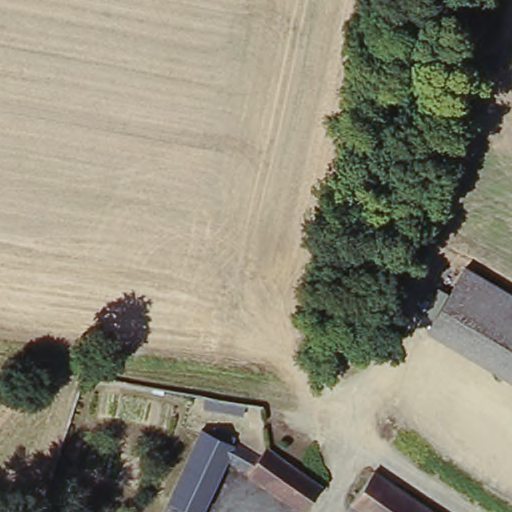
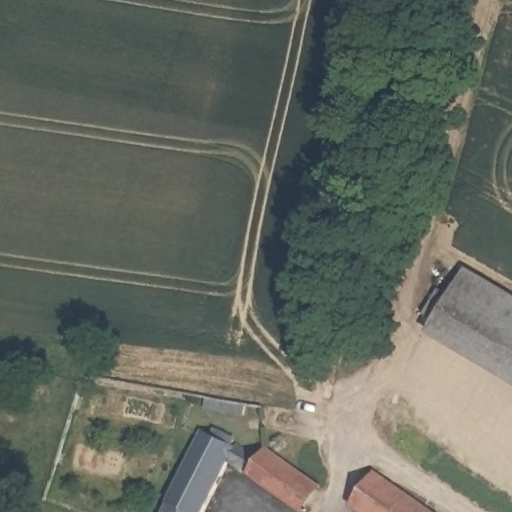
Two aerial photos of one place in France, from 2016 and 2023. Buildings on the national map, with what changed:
unchanged [(435,322),(465,273),(512,300),(512,381),(428,333),(435,322)]
unchanged [(243,415),(204,410),(206,394),(246,400),(243,415)]
unchanged [(236,448),(261,462),(266,455),(319,491),(307,512),(298,512),(276,496),(247,478),(227,467),(205,512),(165,512),(185,470),(200,437),(234,452),(236,448)]
unchanged [(375,468),(389,478),(440,512),(361,512),(350,505),(375,468)]

